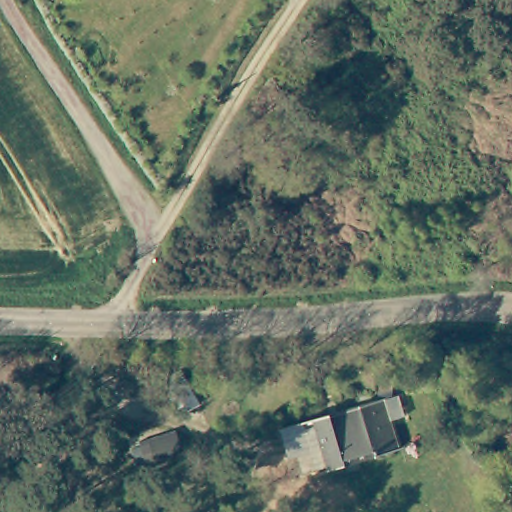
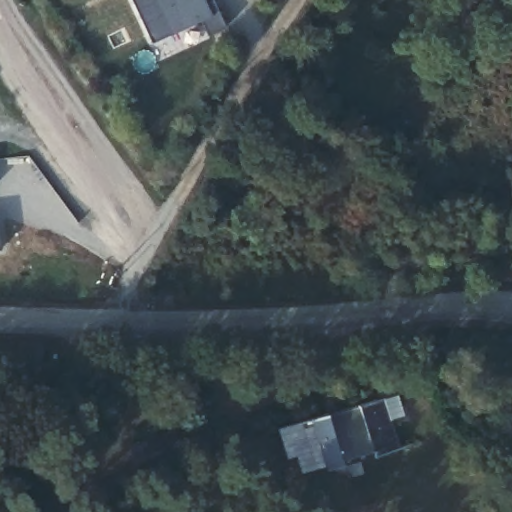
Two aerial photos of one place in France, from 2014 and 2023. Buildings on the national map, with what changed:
new [(211,1),(212,0),(214,0),(225,26),(207,35),(202,20),(172,33),(151,41),(132,0),(211,0),(211,1)]
unchanged [(245,111),(261,92),(270,81),(288,104),(277,113),(258,131),(245,111)]
new [(0,249),(0,237),(1,249),(0,249)]
unchanged [(392,418),(398,445),(347,462),(293,474),(278,426),(326,410),(382,397),(398,391),(406,414),(392,418)]
unchanged [(178,449),(156,462),(146,447),(169,434),(178,449)]

